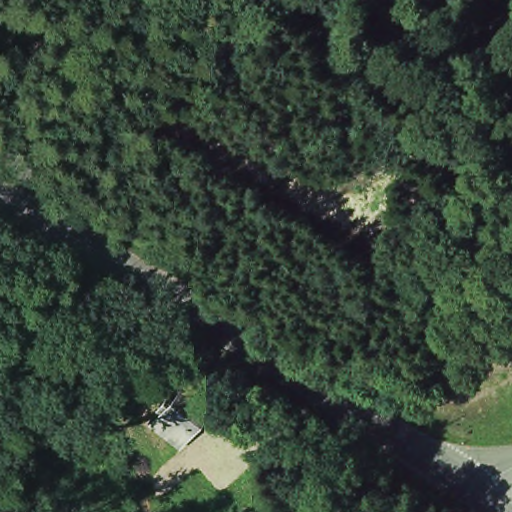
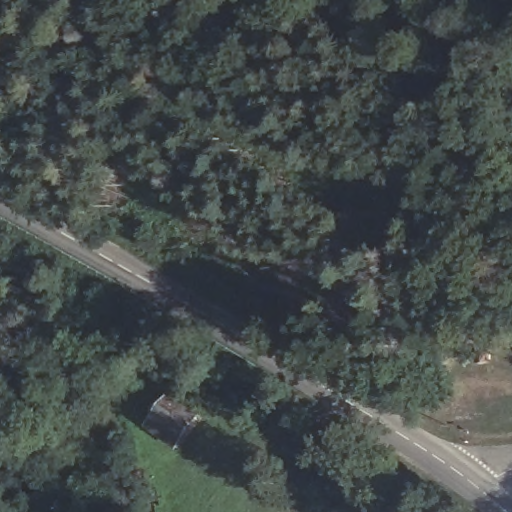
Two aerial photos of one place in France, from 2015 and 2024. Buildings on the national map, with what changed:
unchanged [(184,454),(155,434),(172,410),(178,413),(184,407),(205,424),(184,454)]

